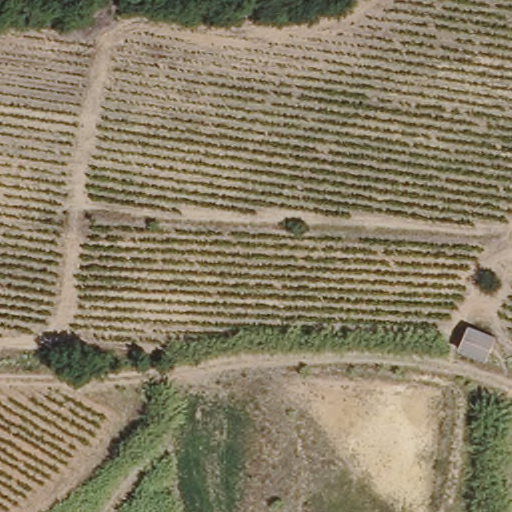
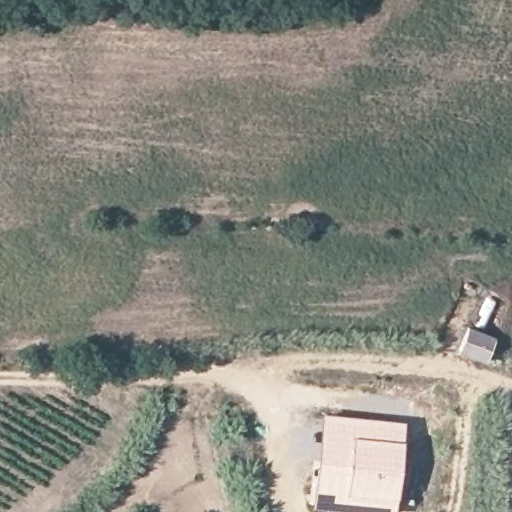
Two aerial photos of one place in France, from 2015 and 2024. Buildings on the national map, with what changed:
unchanged [(468,324),(494,337),(485,357),(456,347),(468,324)]
new [(406,421),(396,512),(362,512),(313,507),(322,412),(406,421)]

